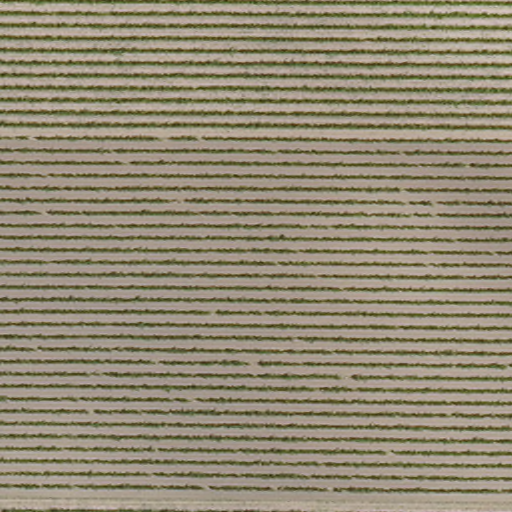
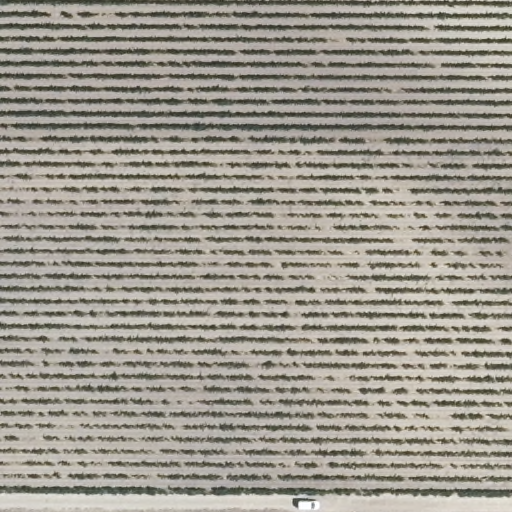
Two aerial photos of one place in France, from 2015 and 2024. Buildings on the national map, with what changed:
[]

